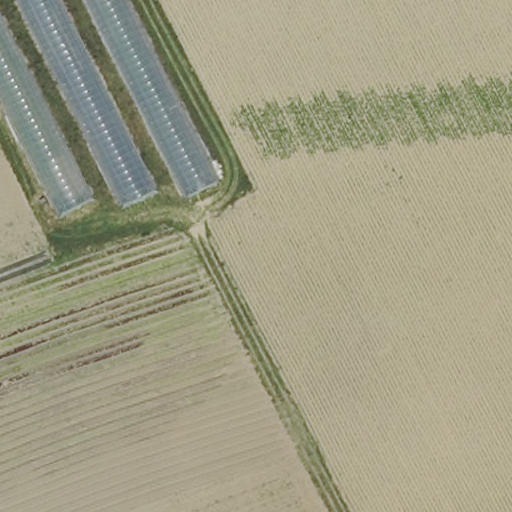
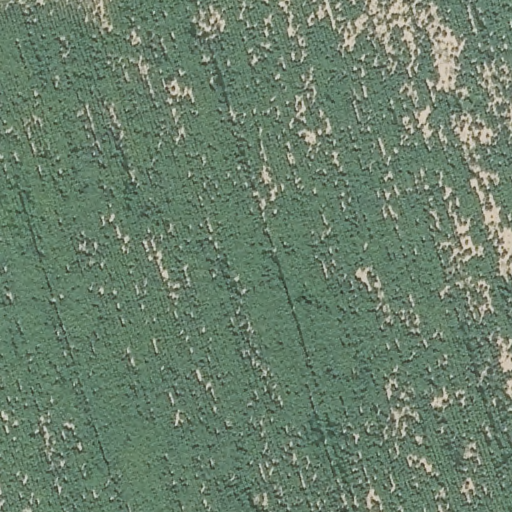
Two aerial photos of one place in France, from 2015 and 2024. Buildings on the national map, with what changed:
demolished [(15,0),(60,0),(154,188),(120,205),(15,0)]
demolished [(83,0),(127,0),(219,178),(185,197),(83,0)]
demolished [(0,104),(0,15),(93,199),(57,218),(0,104)]

